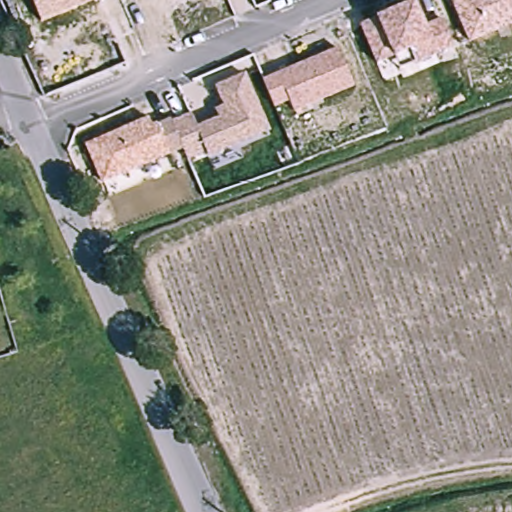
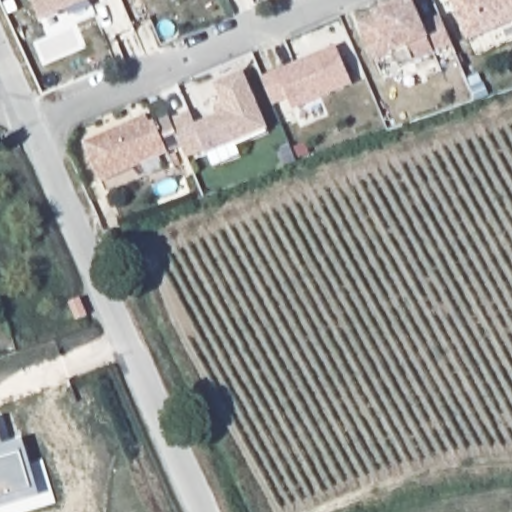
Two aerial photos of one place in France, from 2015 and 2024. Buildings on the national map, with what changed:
unchanged [(41,22),(31,0),(95,0),(41,22)]
unchanged [(469,43),(450,0),(512,0),(512,25),(469,43)]
unchanged [(415,1),(425,27),(441,20),(453,49),(399,72),(393,57),(375,65),(358,24),(415,1)]
unchanged [(337,49),(354,86),(293,112),(288,102),(274,107),(263,79),(337,49)]
unchanged [(150,117),(152,125),(156,123),(157,125),(171,119),(172,121),(192,112),(198,126),(218,117),(214,109),(223,105),(214,86),(246,73),(269,130),(208,157),(206,154),(187,161),(183,150),(101,184),(84,144),(150,117)]
new [(25,442),(42,498),(0,511),(0,433),(4,447),(25,442)]

